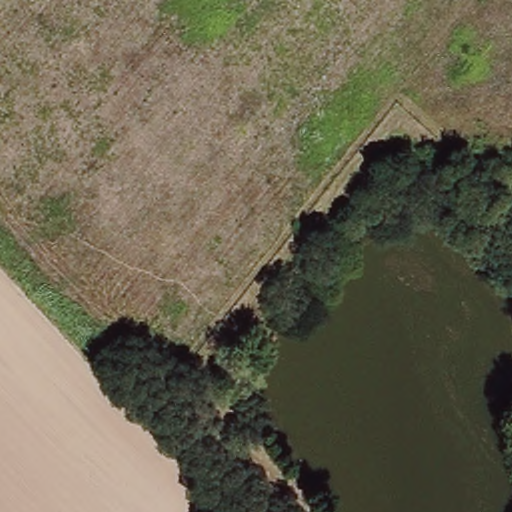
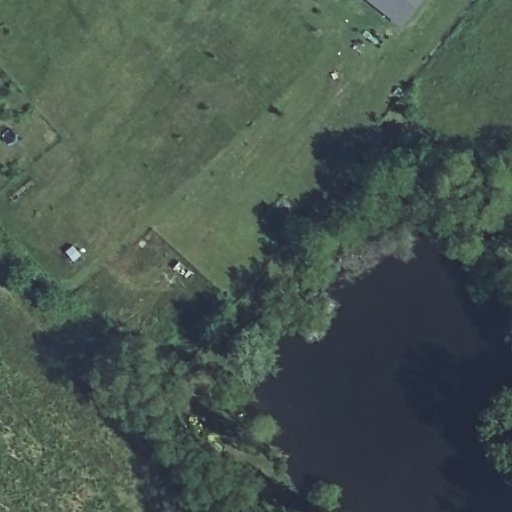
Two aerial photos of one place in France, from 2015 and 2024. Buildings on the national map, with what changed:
new [(400,26),(367,0),(421,0),(400,26)]

